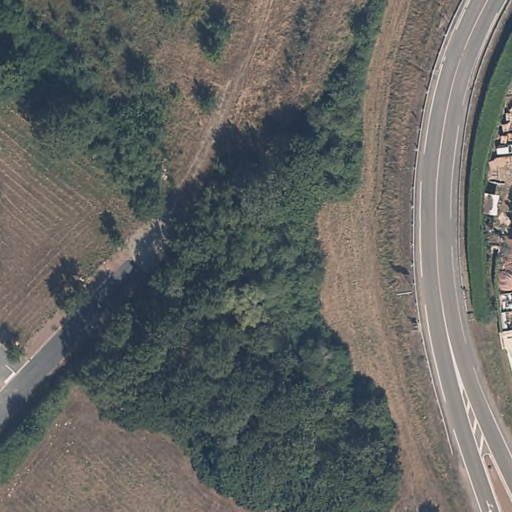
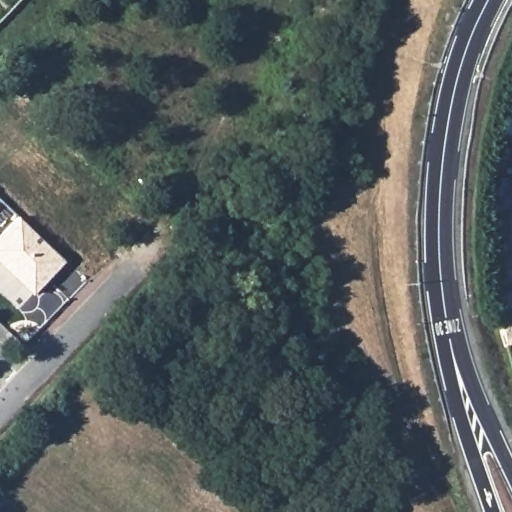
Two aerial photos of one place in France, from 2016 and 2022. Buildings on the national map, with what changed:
new [(19,218),(65,262),(32,295),(0,264),(0,237),(19,218)]

